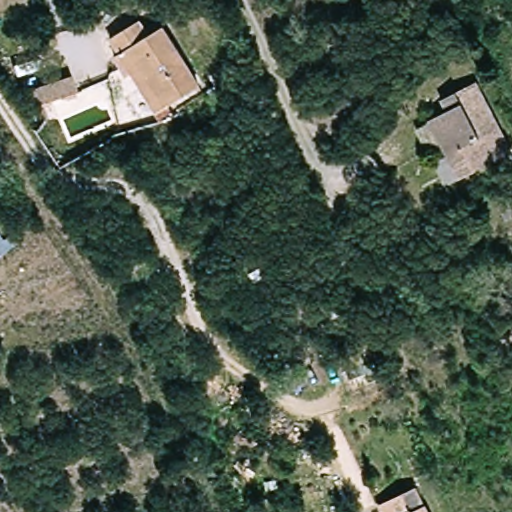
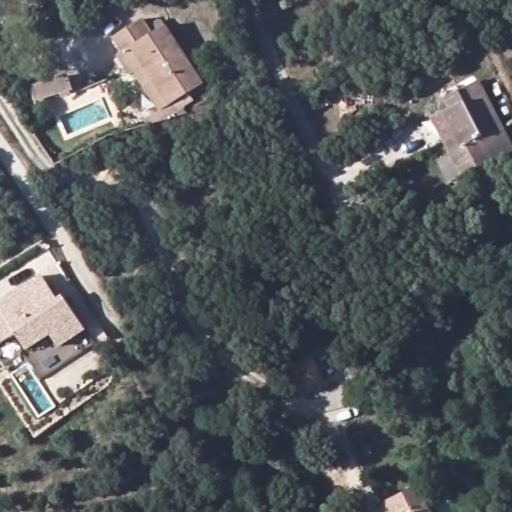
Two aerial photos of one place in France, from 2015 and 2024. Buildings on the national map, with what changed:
unchanged [(150,93),(138,71),(133,74),(122,54),(128,51),(119,35),(149,20),(157,36),(172,28),(204,90),(169,108),(161,113),(150,93)]
unchanged [(78,70),(81,86),(43,94),(39,78),(78,70)]
unchanged [(445,97),(476,86),(499,164),(447,179),(436,140),(429,119),(441,114),(448,111),(445,97)]
new [(53,334),(27,350),(17,333),(0,345),(0,311),(1,310),(0,308),(0,305),(41,275),(58,298),(63,295),(85,330),(59,347),(53,334)]
unchanged [(417,488),(427,512),(383,512),(379,502),(417,488)]

